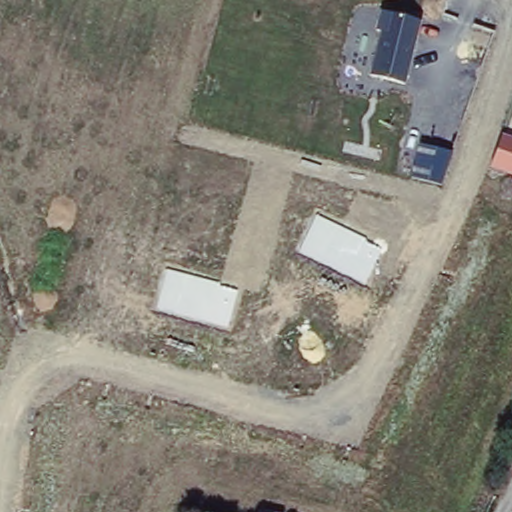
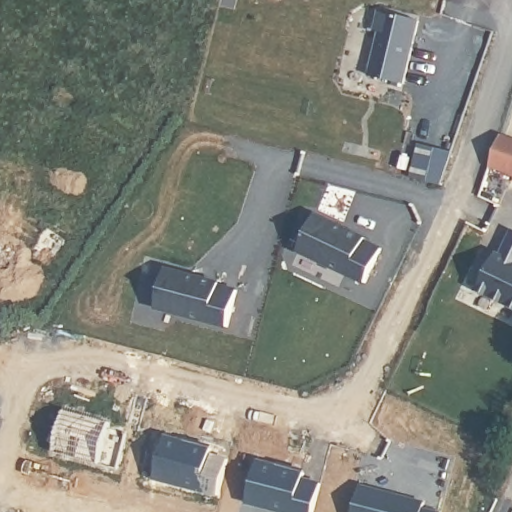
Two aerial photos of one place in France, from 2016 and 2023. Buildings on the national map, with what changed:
unchanged [(381,33),(374,31),(379,11),(421,22),(408,82),(370,74),(381,33)]
unchanged [(512,137),(512,175),(489,168),(502,133),(512,137)]
unchanged [(419,145),(452,153),(442,183),(413,176),(419,145)]
unchanged [(365,238),(363,241),(381,250),(363,286),(297,253),(315,215),(365,238)]
new [(512,228),(512,299),(481,282),(497,250),(501,251),(511,227),(512,228)]
unchanged [(220,282),(219,286),(239,291),(227,328),(155,309),(166,269),(220,282)]
new [(63,410),(109,421),(108,427),(125,431),(116,467),(53,452),(63,410)]
new [(164,438),(210,449),(209,455),(227,459),(218,495),(154,480),(164,438)]
new [(302,472),(300,478),(318,482),(311,512),(285,512),(246,502),(256,460),(302,472)]
new [(422,499),(419,505),(438,509),(437,512),(351,512),(358,483),(422,499)]

